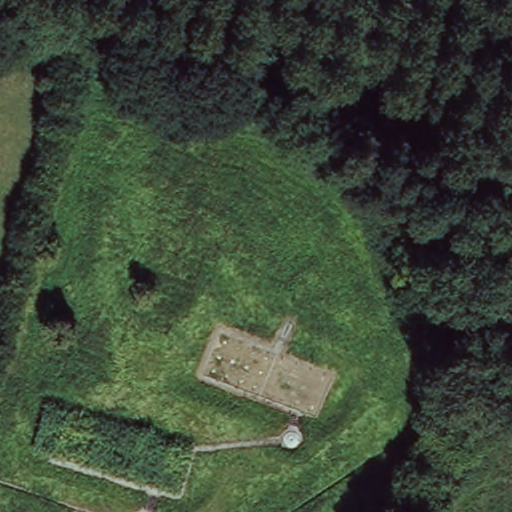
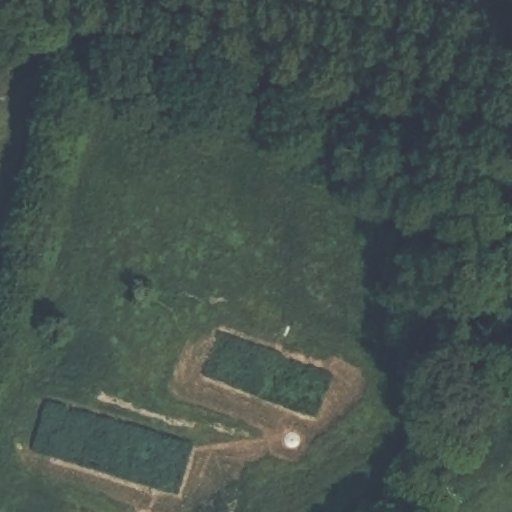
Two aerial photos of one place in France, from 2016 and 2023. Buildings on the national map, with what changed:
unchanged [(475,259),(484,233),(488,223),(512,230),(512,266),(510,270),(475,259)]

